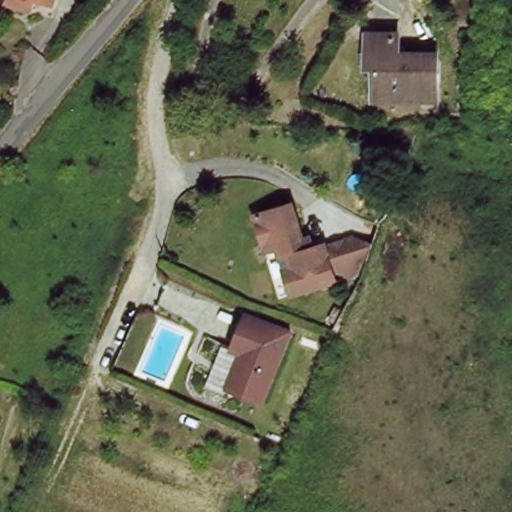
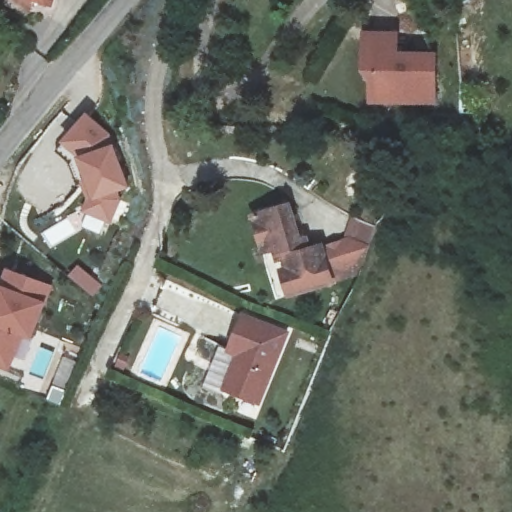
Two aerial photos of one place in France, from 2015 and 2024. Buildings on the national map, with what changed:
unchanged [(19,0),(55,0),(51,11),(19,0)]
unchanged [(395,32),(394,54),(436,54),(435,101),(377,100),(378,71),(367,72),(368,32),(395,32)]
new [(88,201),(83,184),(88,182),(79,160),(62,144),(86,116),(116,147),(130,188),(119,194),(121,202),(111,225),(84,213),(88,201)]
unchanged [(271,271),(281,267),(278,257),(273,257),(271,247),(263,247),(255,212),(290,205),(298,241),(304,240),(306,251),(316,249),(317,257),(323,286),(287,293),(277,295),(271,271)]
unchanged [(341,252),(360,254),(353,271),(350,281),(323,286),(317,257),(341,252)]
new [(10,269),(54,287),(48,305),(33,341),(23,337),(10,372),(0,368),(0,291),(3,285),(10,269)]
unchanged [(288,337),(258,403),(228,391),(241,357),(231,352),(246,318),(288,337)]

